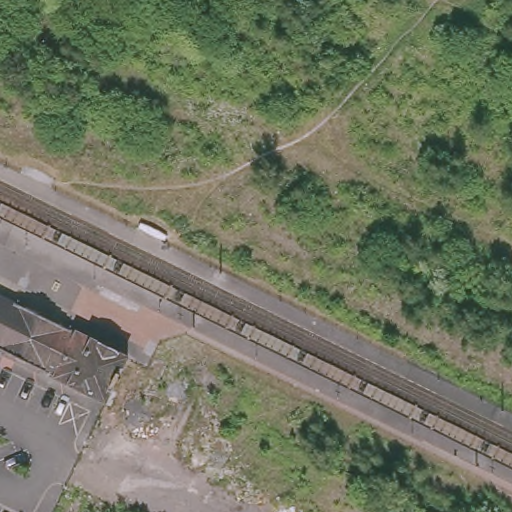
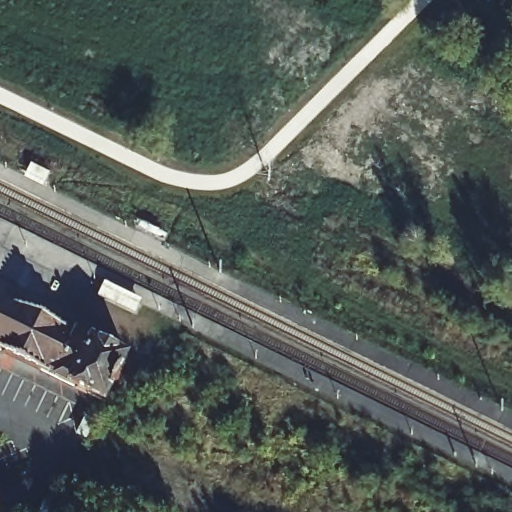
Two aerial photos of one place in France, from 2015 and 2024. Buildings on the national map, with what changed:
unchanged [(106,401),(0,349),(0,301),(125,361),(106,401)]

